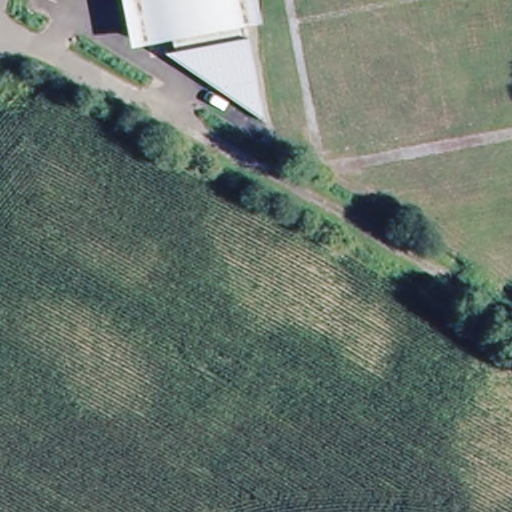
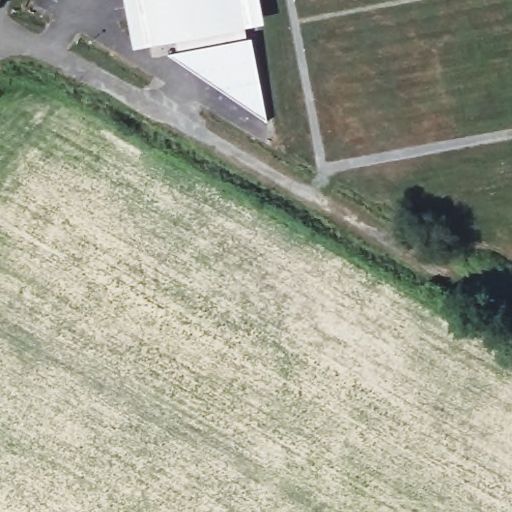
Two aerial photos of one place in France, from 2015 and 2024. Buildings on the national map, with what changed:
unchanged [(248,21),(243,22),(246,36),(251,35),(265,119),(167,50),(176,49),(173,34),(147,38),(141,0),(245,0),(248,21)]

